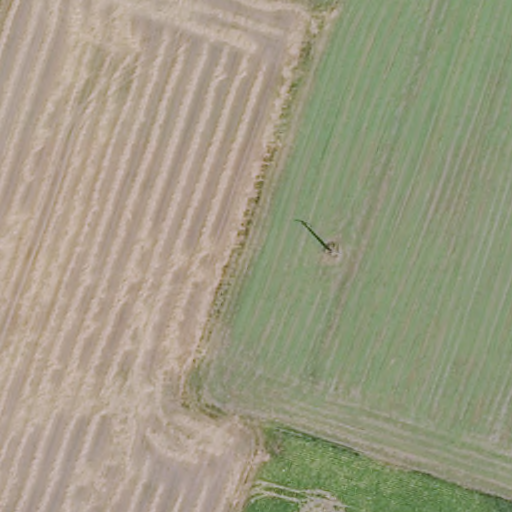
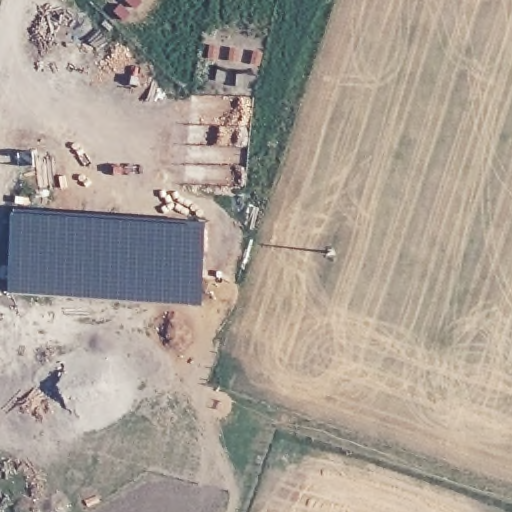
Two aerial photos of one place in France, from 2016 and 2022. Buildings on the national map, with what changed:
new [(14,204),(206,219),(200,301),(8,286),(14,204)]

